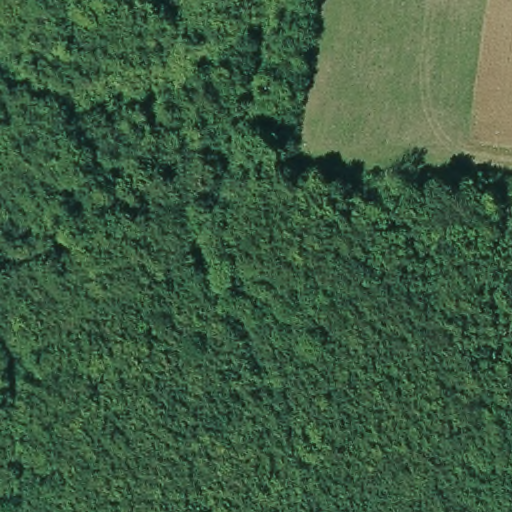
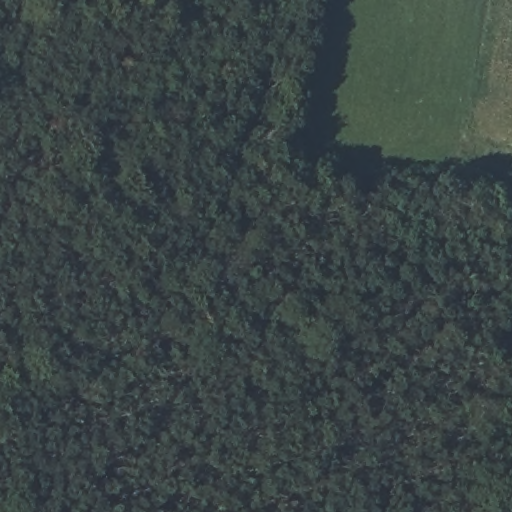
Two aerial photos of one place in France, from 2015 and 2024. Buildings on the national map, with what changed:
[]

